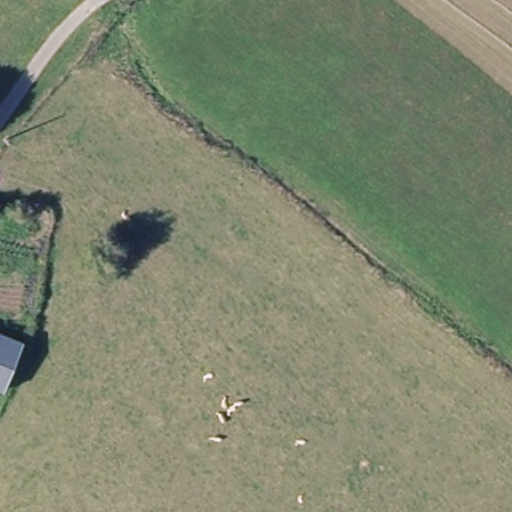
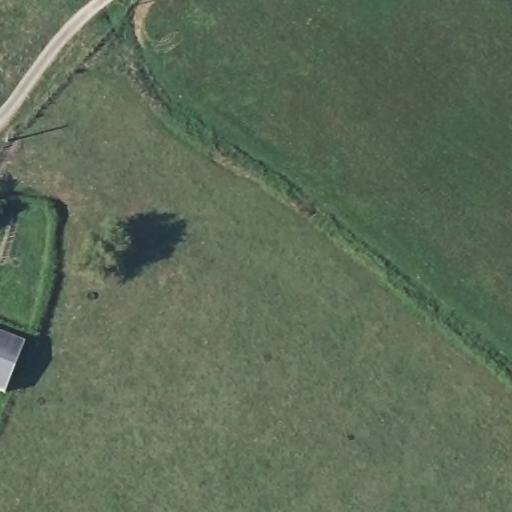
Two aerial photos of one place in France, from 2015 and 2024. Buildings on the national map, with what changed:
unchanged [(0,386),(0,333),(31,346),(14,392),(0,386)]

